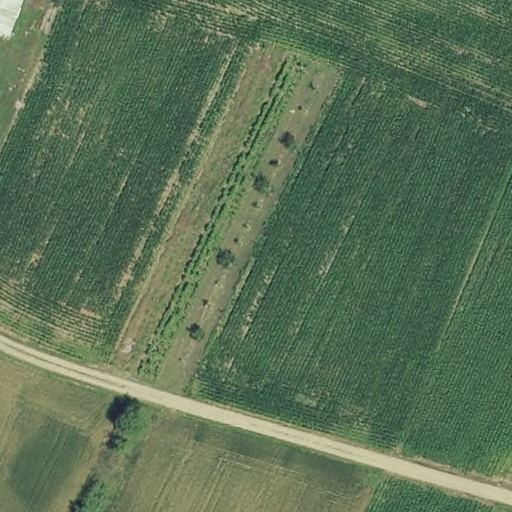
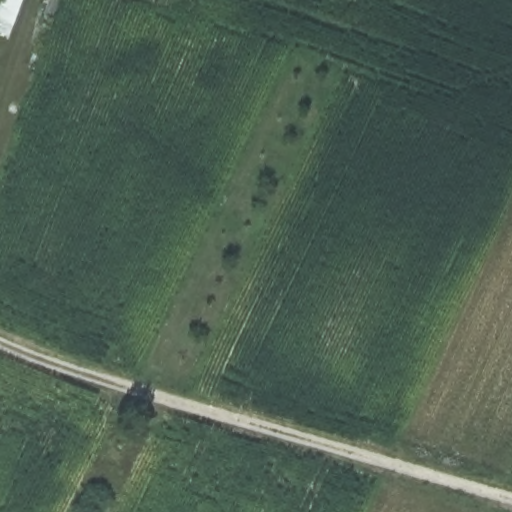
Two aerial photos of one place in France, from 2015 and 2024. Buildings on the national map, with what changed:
unchanged [(0,36),(0,0),(22,0),(7,37),(0,36)]
unchanged [(37,0),(45,0),(45,1),(37,0)]

